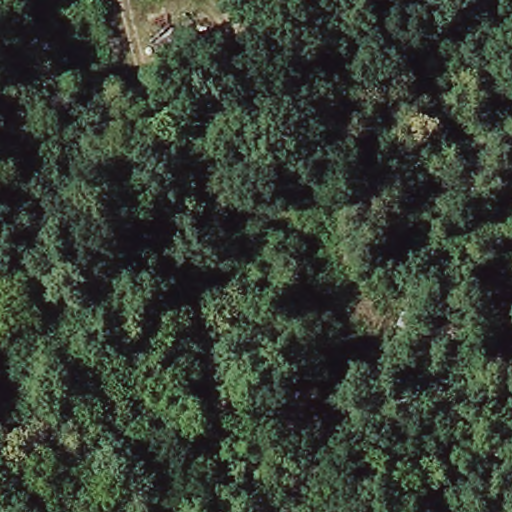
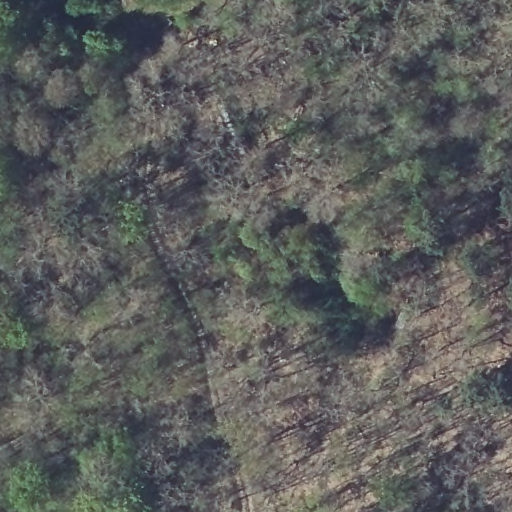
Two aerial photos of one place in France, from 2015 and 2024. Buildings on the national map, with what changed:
[]

